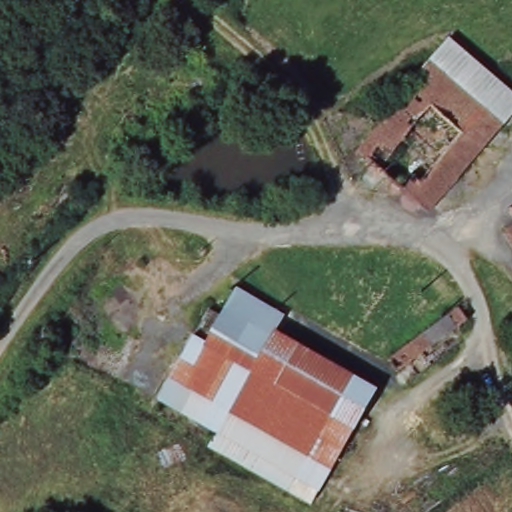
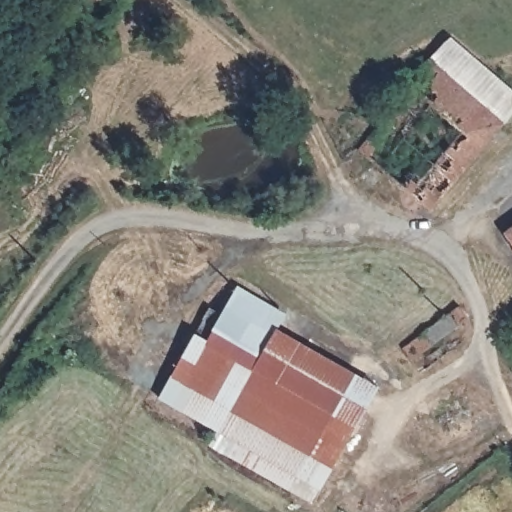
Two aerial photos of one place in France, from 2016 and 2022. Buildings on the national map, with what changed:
unchanged [(512,113),(504,122),(429,57),(450,34),(512,88),(512,113)]
unchanged [(366,116),(385,92),(394,99),(429,57),(504,122),(427,209),(355,148),(376,123),(366,116)]
unchanged [(512,241),(504,230),(512,225),(512,241)]
unchanged [(283,312),(274,328),(267,342),(219,313),(235,286),(283,312)]
unchanged [(382,360),(394,351),(463,299),(473,312),(403,364),(392,372),(382,360)]
unchanged [(377,387),(319,489),(295,475),(287,489),(208,443),(215,430),(156,397),(208,307),(219,313),(267,342),(274,328),(377,387)]

